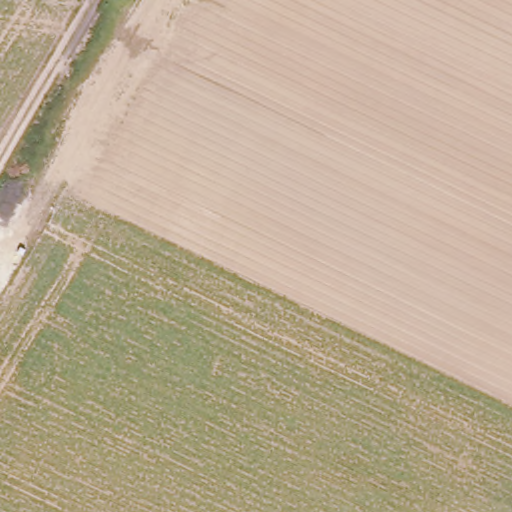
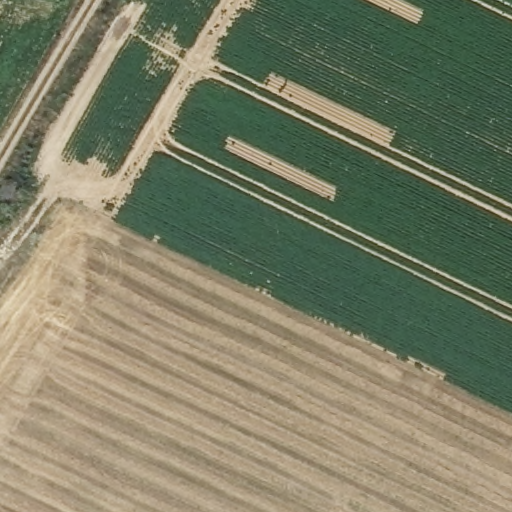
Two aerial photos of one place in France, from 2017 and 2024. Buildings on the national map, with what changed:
[]

